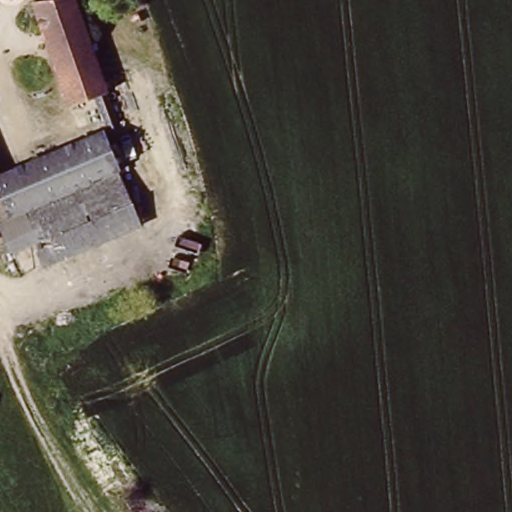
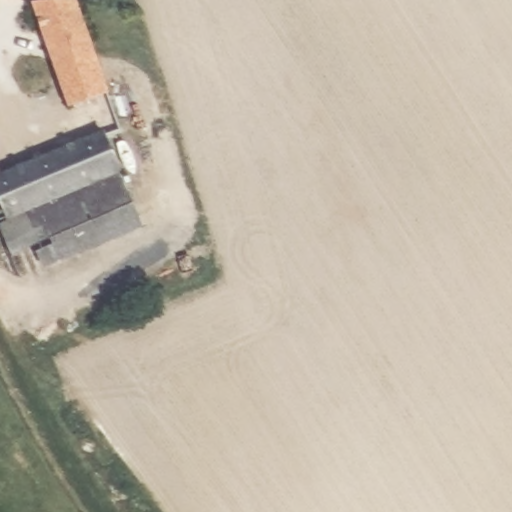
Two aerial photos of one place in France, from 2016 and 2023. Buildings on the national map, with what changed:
unchanged [(34,6),(54,0),(76,0),(112,125),(101,128),(93,101),(64,110),(34,6)]
unchanged [(100,152),(108,173),(0,212),(0,167),(94,134),(100,152)]
unchanged [(0,215),(0,212),(108,173),(127,225),(18,264),(0,215)]

